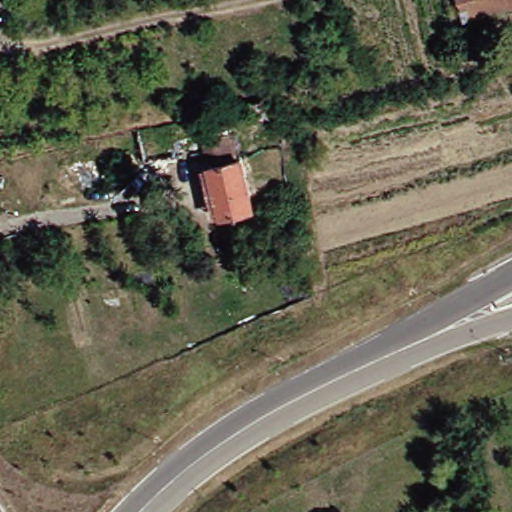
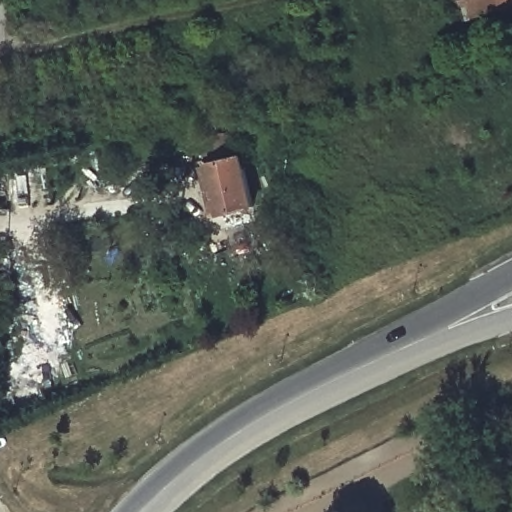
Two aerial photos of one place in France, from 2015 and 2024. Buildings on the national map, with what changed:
unchanged [(453,0),(512,0),(512,9),(460,24),(453,0)]
unchanged [(245,20),(248,40),(222,45),(217,26),(245,20)]
unchanged [(251,204),(219,212),(207,162),(200,135),(230,129),(236,155),(239,154),(251,204)]

